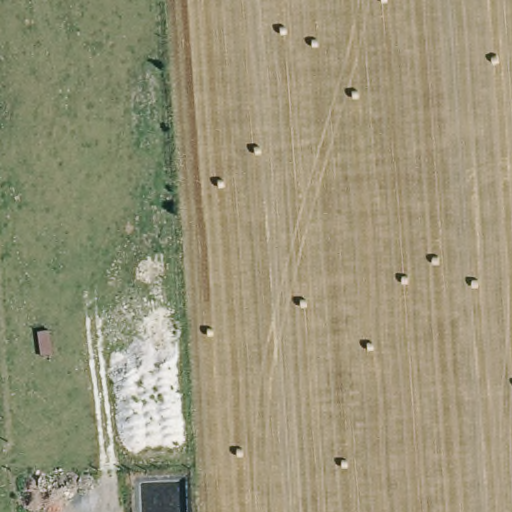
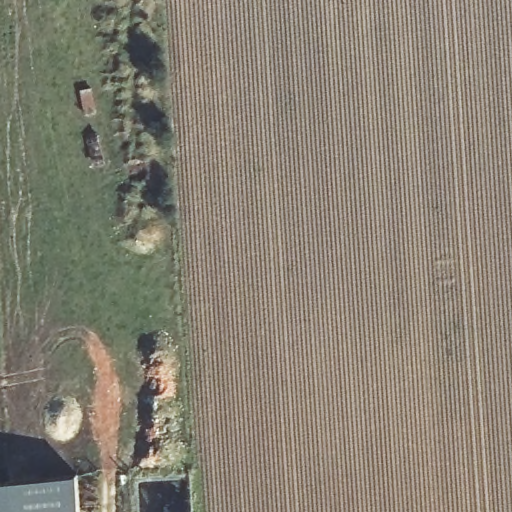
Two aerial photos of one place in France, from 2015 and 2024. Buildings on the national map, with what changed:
new [(0,481),(77,477),(80,512),(0,512),(0,481)]

